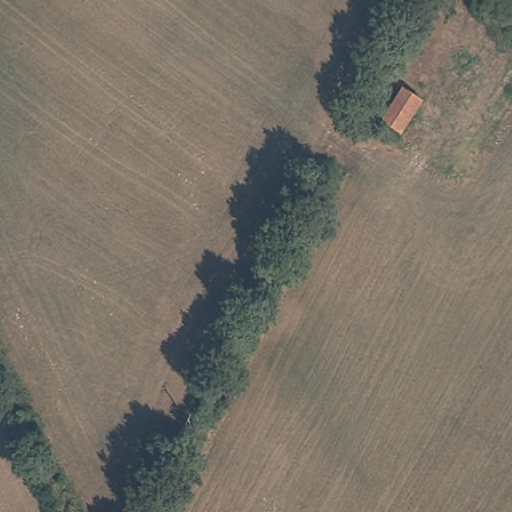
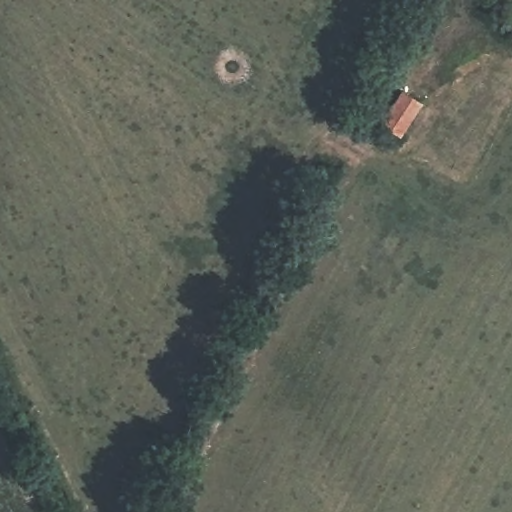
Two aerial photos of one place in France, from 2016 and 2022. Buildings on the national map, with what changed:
unchanged [(402,135),(385,124),(406,91),(424,102),(402,135)]

